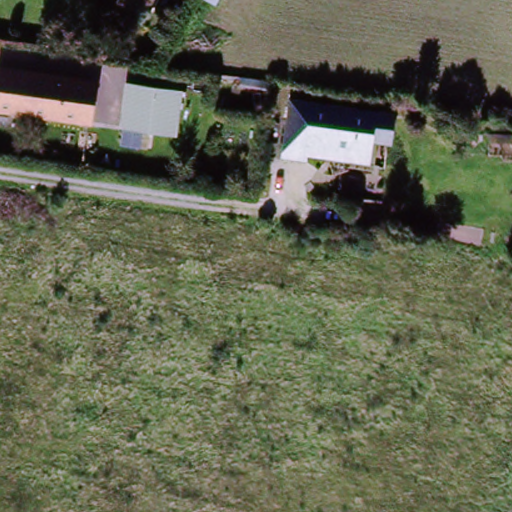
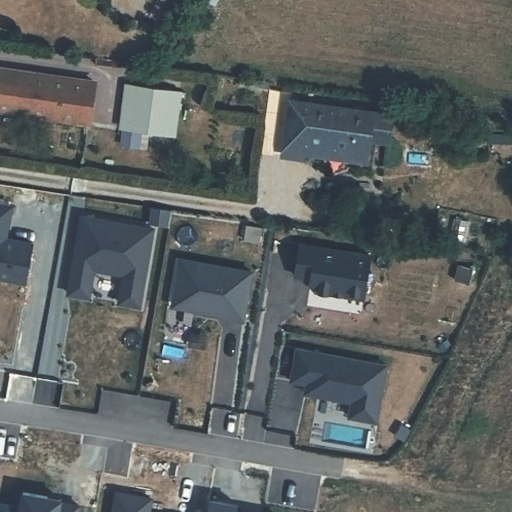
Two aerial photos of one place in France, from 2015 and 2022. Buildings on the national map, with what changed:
unchanged [(45,78),(90,85),(84,129),(0,117),(0,71),(37,77),(45,78)]
unchanged [(153,143),(129,139),(131,125),(129,124),(135,79),(188,86),(182,132),(155,129),(153,143)]
unchanged [(300,160),(280,157),(288,103),(389,118),(386,144),(367,141),(364,163),(302,154),(300,160)]
unchanged [(512,143),(512,153),(489,152),(489,142),(512,143)]
new [(4,239),(14,241),(30,244),(23,282),(0,279),(0,205),(10,207),(4,239)]
new [(84,218),(154,230),(139,307),(120,303),(125,275),(94,270),(89,298),(69,295),(84,218)]
new [(330,292),(313,290),(308,284),(309,277),(294,275),(298,243),(368,253),(362,293),(344,291),(343,294),(330,292)]
new [(178,256),(248,268),(239,316),(223,314),(224,312),(175,304),(170,296),(178,256)]
new [(289,381),(295,349),(384,365),(374,421),(348,416),(350,401),(315,395),(303,393),(304,383),(289,381)]
new [(145,497),(144,512),(109,512),(112,492),(145,497)]
new [(21,496),(46,500),(62,500),(61,502),(74,505),(73,512),(0,512),(0,508),(19,511),(21,496)]
new [(240,503),(238,512),(208,512),(211,498),(240,503)]

